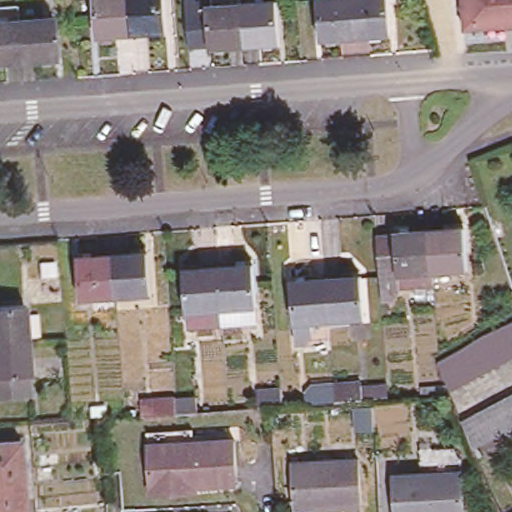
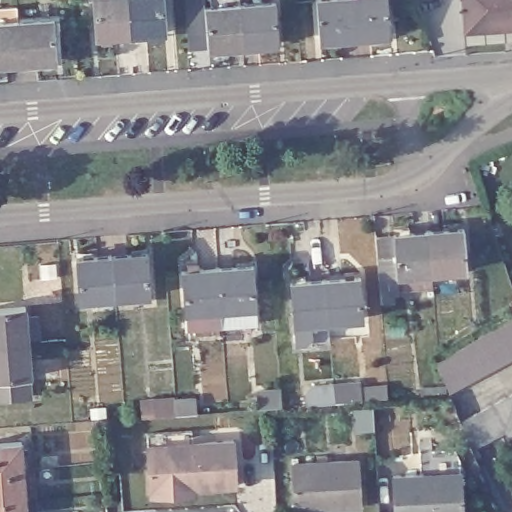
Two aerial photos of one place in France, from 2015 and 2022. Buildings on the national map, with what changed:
unchanged [(90,28),(88,0),(124,0),(126,25),(90,28)]
unchanged [(160,22),(126,25),(124,0),(159,0),(160,22)]
unchanged [(244,41),(210,43),(207,1),(220,0),(241,0),(244,41)]
unchanged [(241,0),(276,0),(278,39),(244,41),(241,0)]
unchanged [(355,32),(320,35),(317,0),(353,0),(355,32)]
unchanged [(355,32),(353,0),(388,0),(390,29),(355,32)]
unchanged [(462,30),(460,0),(512,0),(512,27),(462,30)]
unchanged [(18,21),(53,18),(56,60),(22,62),(0,64),(0,7),(17,7),(18,21)]
unchanged [(407,281),(390,282),(386,225),(405,223),(440,221),(475,218),(477,260),(443,262),(444,279),(407,281)]
unchanged [(140,293),(138,286),(115,287),(112,246),(147,243),(150,284),(150,291),(140,293)]
unchanged [(115,287),(80,289),(78,249),(112,246),(115,287)]
unchanged [(184,266),(217,264),(252,261),(255,303),(257,319),(225,321),(224,305),(220,305),(222,322),(187,325),(187,308),(184,266)]
unchanged [(293,333),(293,314),(291,274),(327,272),(361,268),(365,308),(330,311),(331,332),(293,333)]
unchanged [(0,289),(23,287),(27,323),(0,324),(0,289)]
unchanged [(463,380),(436,394),(427,367),(451,351),(512,318),(512,356),(463,380)]
unchanged [(0,324),(27,323),(30,358),(31,379),(0,380),(0,324)]
unchanged [(336,404),(335,387),(362,385),(362,402),(336,404)]
unchanged [(281,408),(271,409),(257,410),(256,392),(280,390),(281,408)]
unchanged [(507,433),(498,438),(472,451),(459,423),(486,409),(512,396),(512,442),(507,433)]
unchanged [(175,402),(195,400),(195,414),(177,415),(142,418),(140,402),(175,399),(175,402)]
unchanged [(191,431),(192,444),(234,442),(237,486),(175,490),(175,495),(153,496),(148,434),(191,431)]
unchanged [(22,466),(0,468),(0,440),(20,438),(22,466)]
unchanged [(419,471),(417,447),(452,445),(460,455),(460,469),(462,512),(395,512),(393,473),(419,471)]
unchanged [(294,506),(293,465),(312,464),(357,461),(359,508),(315,511),(294,512),(294,506)]
unchanged [(25,497),(0,499),(0,468),(22,466),(25,497)]
unchanged [(26,512),(0,512),(0,499),(25,497),(26,512)]

